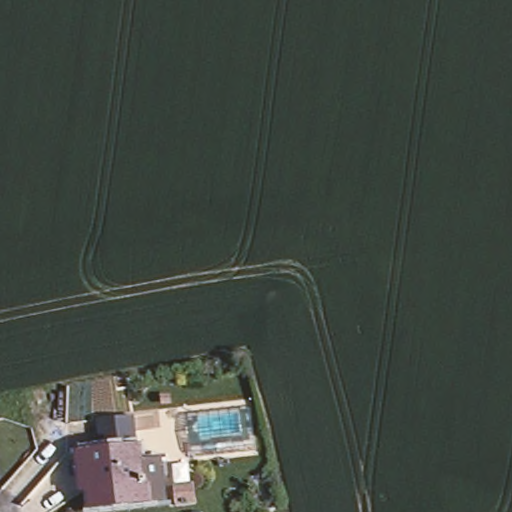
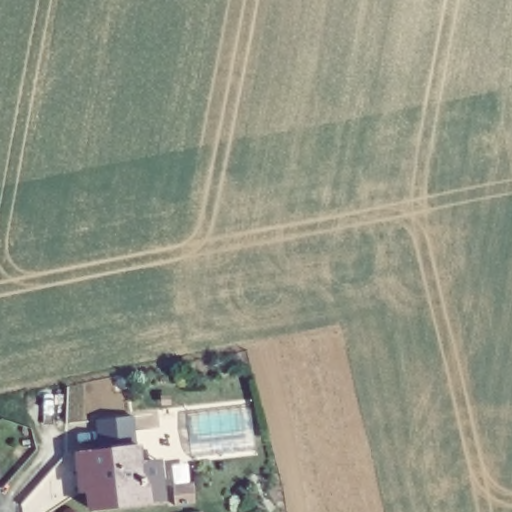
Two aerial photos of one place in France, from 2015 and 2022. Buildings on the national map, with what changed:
unchanged [(133,462),(153,459),(159,500),(85,509),(83,492),(73,493),(69,453),(92,450),(90,434),(87,419),(123,416),(125,427),(127,446),(130,445),(133,462)]

